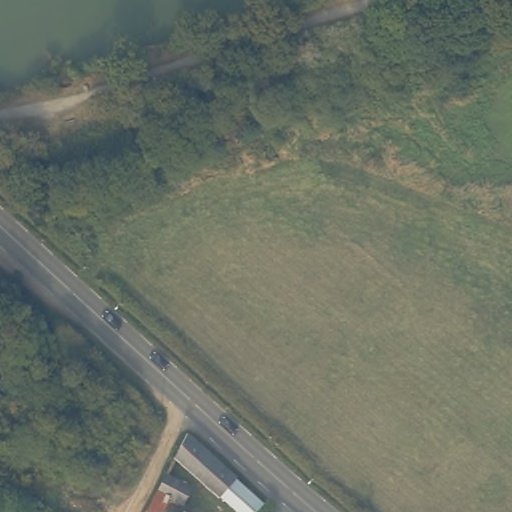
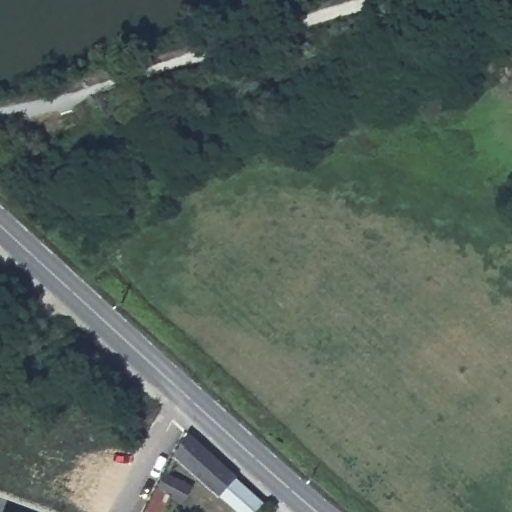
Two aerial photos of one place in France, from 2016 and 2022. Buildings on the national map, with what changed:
unchanged [(221,496),(220,496),(175,457),(181,445),(189,430),(237,476),(263,501),(253,512),(239,512),(221,496)]
unchanged [(157,492),(167,472),(192,485),(183,500),(172,496),(163,512),(147,512),(157,492)]

